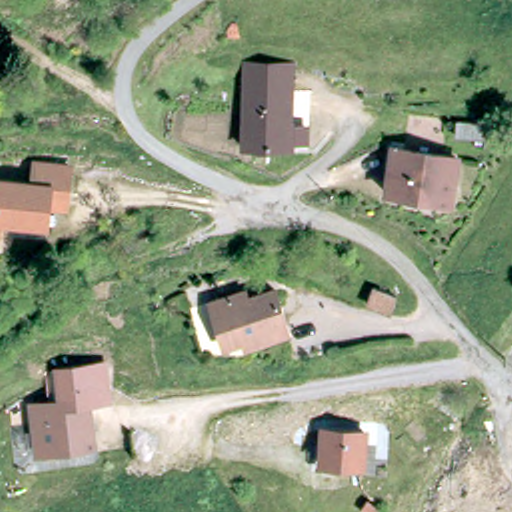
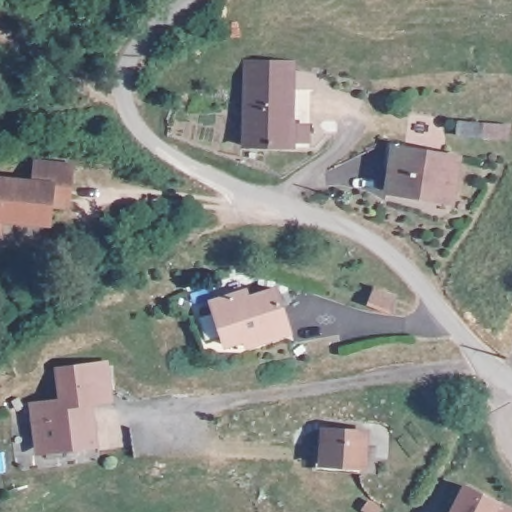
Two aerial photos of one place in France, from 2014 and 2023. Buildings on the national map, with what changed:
unchanged [(296,134),(285,134),(286,141),(237,141),(233,55),(256,55),(283,54),(283,61),(284,89),(285,108),(285,117),(285,121),(296,121),(296,134)]
unchanged [(461,134),(460,120),(486,119),(486,132),(461,134)]
unchanged [(380,179),(383,162),(388,135),(437,143),(452,145),(444,190),(380,179)]
unchanged [(35,185),(37,165),(72,170),(67,210),(50,208),(48,227),(16,224),(16,221),(2,219),(1,221),(0,224),(0,181),(35,185)]
unchanged [(246,340),(225,346),(212,302),(233,295),(246,291),(248,299),(276,290),(290,333),(249,346),(246,340)]
unchanged [(373,305),(380,290),(403,299),(396,313),(373,305)]
unchanged [(92,397),(61,401),(54,370),(108,362),(113,405),(93,405),(92,397)]
unchanged [(38,405),(92,397),(98,442),(76,445),(71,441),(43,445),(38,405)]
unchanged [(315,476),(317,453),(323,453),(324,436),(364,439),(361,473),(361,480),(315,476)]
new [(505,505),(512,508),(512,512),(459,512),(471,488),(505,505)]

